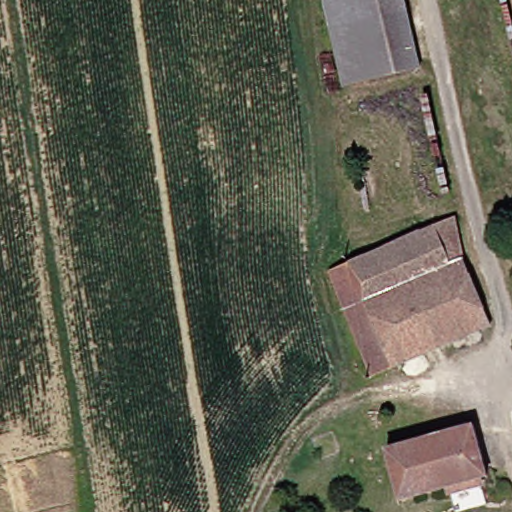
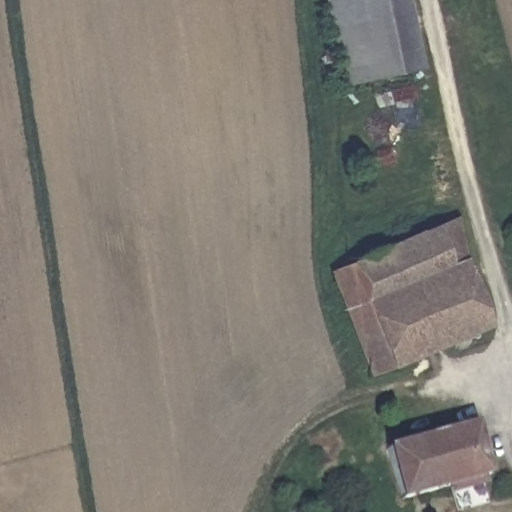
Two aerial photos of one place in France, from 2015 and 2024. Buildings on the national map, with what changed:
unchanged [(346,87),(333,0),(414,0),(425,76),(346,87)]
unchanged [(366,345),(338,267),(463,223),(476,262),(448,273),(469,337),(395,367),(378,376),(366,345)]
unchanged [(497,330),(469,337),(448,273),(476,262),(497,330)]
unchanged [(406,500),(396,449),(483,429),(494,480),(406,500)]

